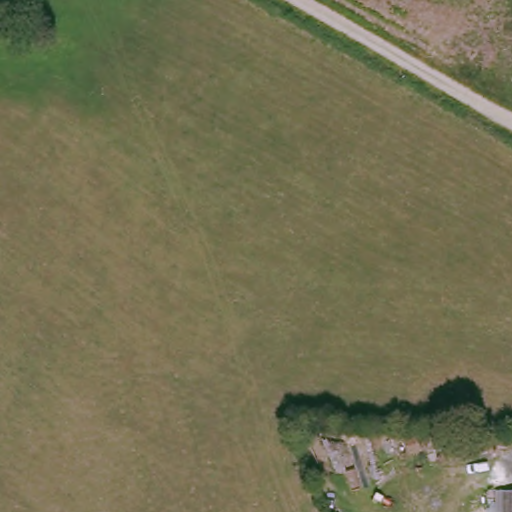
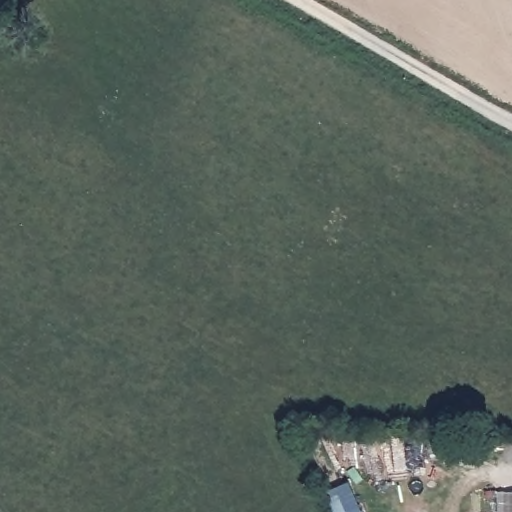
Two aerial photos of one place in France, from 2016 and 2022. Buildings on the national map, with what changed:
unchanged [(512,488),(512,512),(498,512),(498,488),(512,488)]

